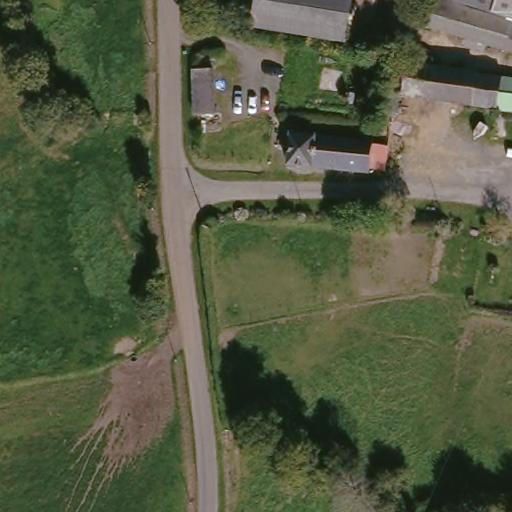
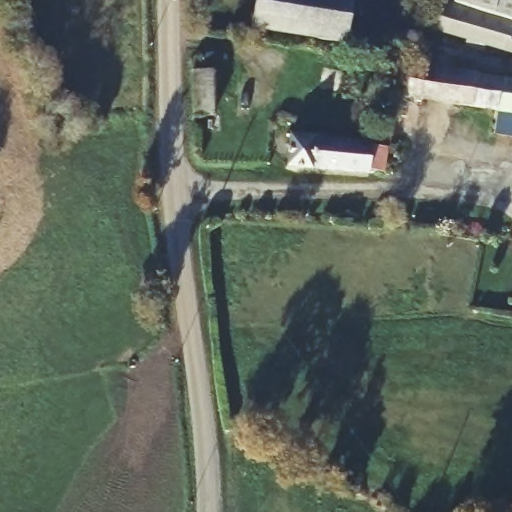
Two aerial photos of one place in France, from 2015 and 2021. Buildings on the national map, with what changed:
unchanged [(352,21),(258,19),(258,0),(353,0),(352,21)]
unchanged [(512,52),(424,26),(433,0),(512,0),(512,52)]
unchanged [(489,107),(489,109),(396,98),(403,61),(409,61),(414,32),(439,36),(434,65),(493,74),(489,107)]
unchanged [(512,110),(489,107),(493,74),(512,77),(512,110)]
unchanged [(209,79),(212,107),(194,109),(191,81),(209,79)]
unchanged [(372,165),(371,171),(294,165),(296,130),(371,134),(371,140),(384,140),(384,166),(372,165)]

